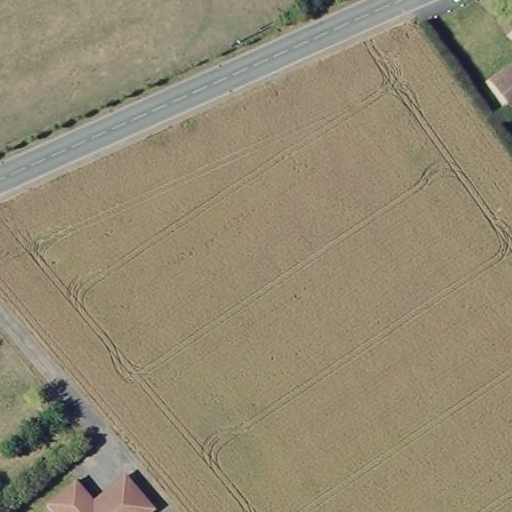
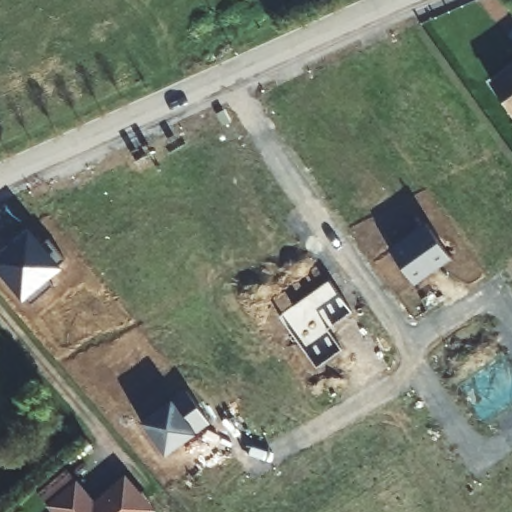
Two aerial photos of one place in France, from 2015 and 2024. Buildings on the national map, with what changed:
unchanged [(512,66),(512,112),(490,81),(512,66)]
new [(451,257),(415,283),(390,250),(426,224),(451,257)]
new [(43,240),(48,238),(65,258),(60,262),(63,265),(50,277),(52,283),(33,300),(28,294),(23,298),(0,270),(0,254),(30,228),(43,240)]
new [(352,310),(329,329),(341,349),(317,365),(280,315),(330,279),(352,310)]
new [(176,401),(187,392),(211,423),(196,433),(166,454),(141,422),(173,397),(176,401)]
unchanged [(50,505),(80,481),(97,501),(129,476),(159,509),(156,512),(56,512),(50,505)]

